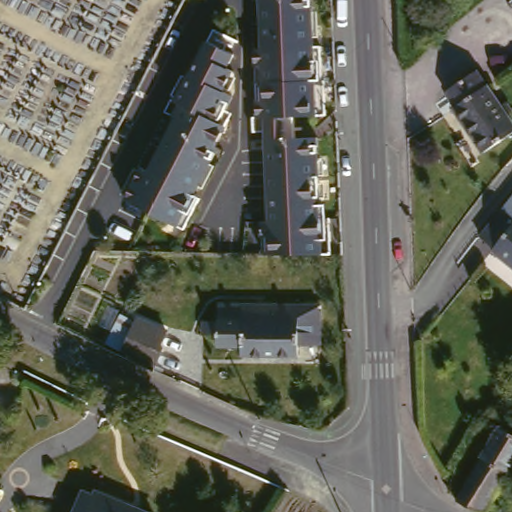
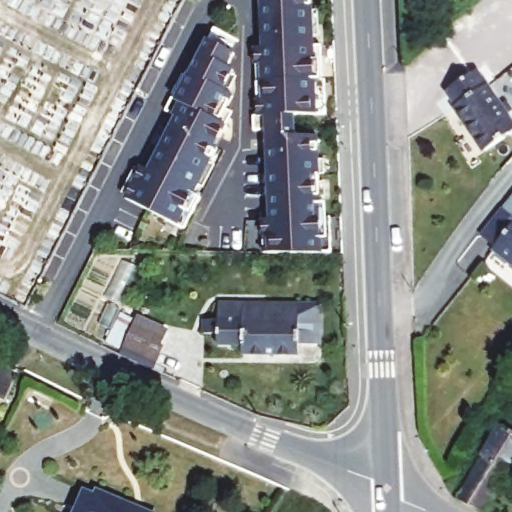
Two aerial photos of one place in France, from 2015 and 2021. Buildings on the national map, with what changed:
unchanged [(276,215),(273,127),(260,128),(260,114),(255,114),(253,46),(261,46),(260,0),(306,0),(308,44),(316,44),(318,77),(320,77),(322,111),(297,112),(296,132),(317,131),(318,157),(312,165),(268,232),(267,216),(276,215)]
unchanged [(137,164),(145,167),(171,114),(162,109),(160,108),(166,95),(168,96),(170,97),(183,70),(185,71),(200,40),(202,38),(227,50),(221,64),(227,67),(217,87),(227,92),(218,110),(225,114),(211,142),(213,144),(199,172),(204,175),(180,224),(122,195),(137,164)]
unchanged [(512,134),(478,155),(449,111),(452,109),(443,96),(475,75),(512,133),(512,134)]
unchanged [(268,232),(312,165),(318,157),(320,212),(325,212),(327,249),(311,248),(268,248),(268,232)]
unchanged [(487,244),(473,233),(497,205),(511,216),(512,215),(512,268),(485,246),(487,244)]
unchanged [(512,268),(512,271),(511,270),(512,268)]
unchanged [(319,308),(321,342),(297,343),(297,356),(242,360),(242,348),(219,348),(218,336),(203,336),(203,320),(217,320),(217,306),(227,305),(243,304),(259,302),(265,302),(295,301),(296,309),(319,308)]
unchanged [(170,333),(156,372),(126,362),(128,356),(113,351),(125,321),(138,327),(139,323),(170,333)]
unchanged [(498,428),(512,435),(512,468),(492,502),(486,512),(479,512),(455,501),(498,428)]
unchanged [(132,501),(131,502),(154,512),(73,512),(83,488),(94,493),(96,487),(132,501)]

